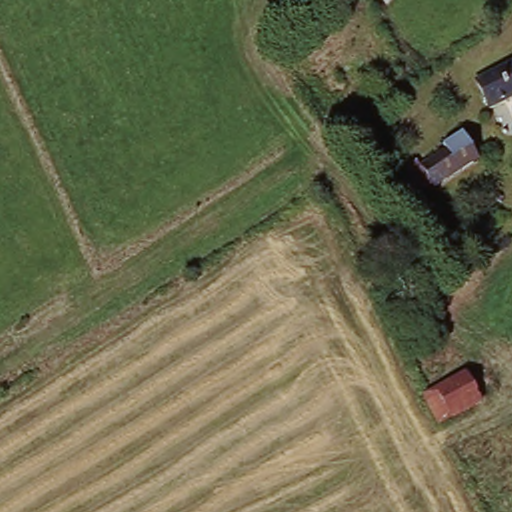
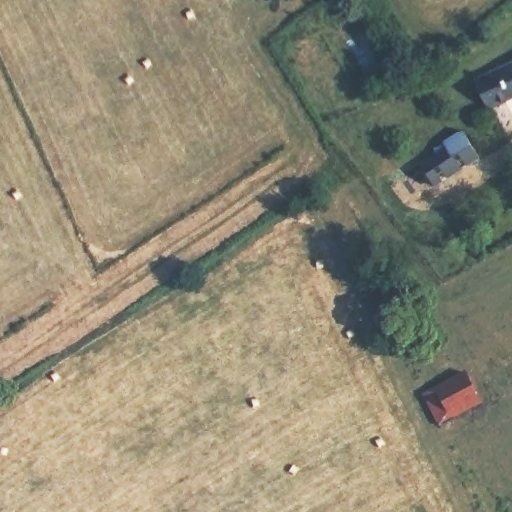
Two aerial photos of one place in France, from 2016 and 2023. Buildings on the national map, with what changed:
unchanged [(512,101),(497,108),(486,79),(512,67),(512,101)]
unchanged [(482,165),(436,191),(424,170),(445,157),(441,150),(465,138),(482,165)]
unchanged [(426,390),(467,370),(483,398),(441,420),(426,390)]

